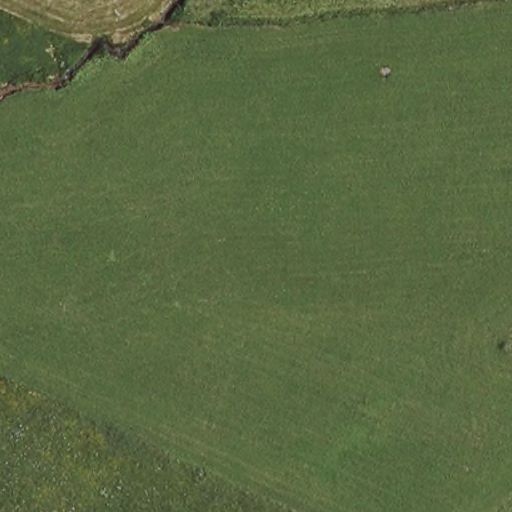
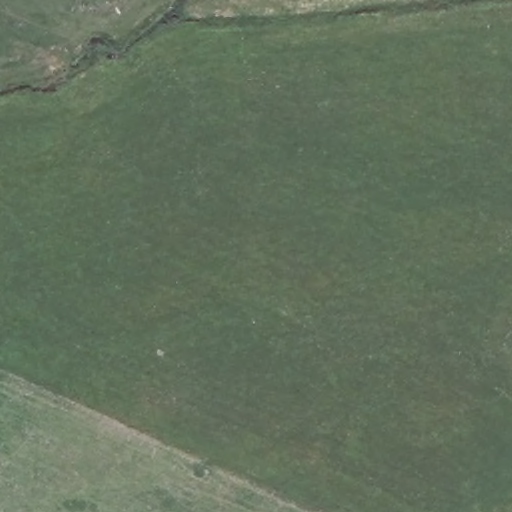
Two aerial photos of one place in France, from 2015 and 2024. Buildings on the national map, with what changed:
[]

